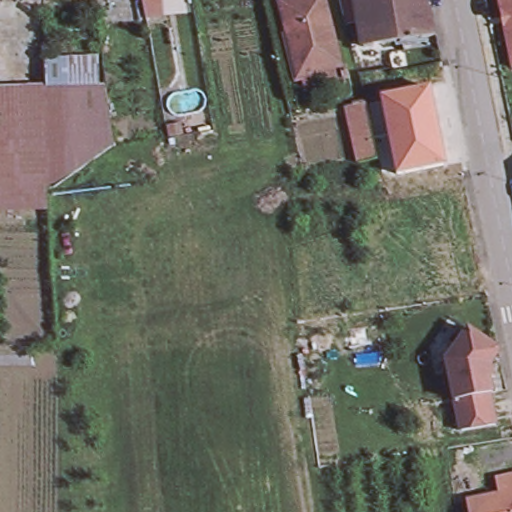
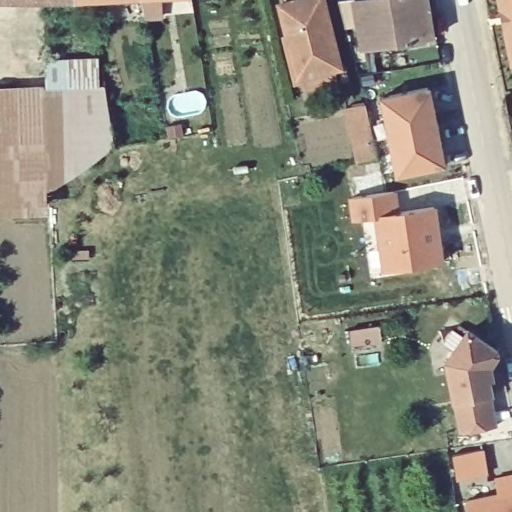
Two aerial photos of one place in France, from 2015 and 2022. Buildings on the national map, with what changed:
unchanged [(113,3),(112,0),(126,0),(126,2),(113,3)]
unchanged [(284,9),(318,0),(326,0),(343,70),(301,81),(284,9)]
unchanged [(366,39),(361,4),(354,5),(353,0),(432,0),(438,36),(367,47),(368,58),(358,60),(354,41),(366,39)]
unchanged [(503,29),(499,9),(497,0),(512,0),(512,67),(511,67),(507,51),(503,29)]
unchanged [(47,63),(100,55),(104,83),(50,90),(47,63)]
unchanged [(397,173),(382,97),(433,87),(449,163),(397,173)]
unchanged [(111,94),(117,140),(87,161),(56,182),(50,184),(51,197),(0,200),(0,96),(111,94)]
unchanged [(375,158),(355,164),(342,113),(363,107),(375,158)]
new [(376,216),(352,219),(348,196),(398,190),(400,211),(436,206),(444,261),(384,270),(376,216)]
unchanged [(434,354),(456,324),(486,345),(477,359),(480,372),(476,373),(479,387),(476,388),(442,393),(434,354)]
unchanged [(442,393),(476,388),(482,419),(448,426),(442,393)]
unchanged [(500,492),(496,476),(512,473),(512,512),(470,512),(467,500),(500,492)]

